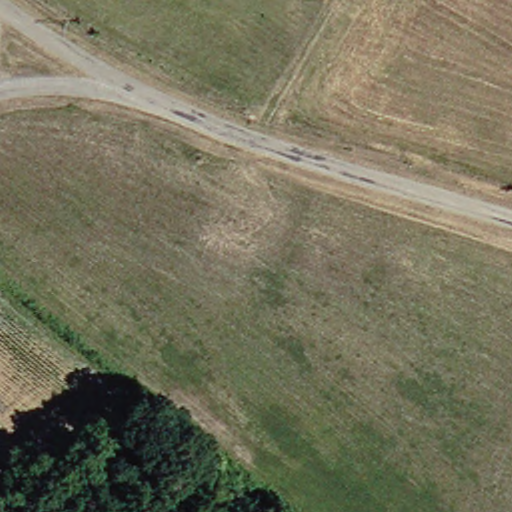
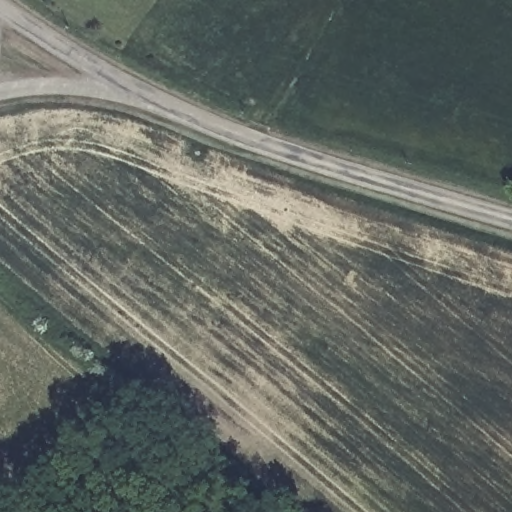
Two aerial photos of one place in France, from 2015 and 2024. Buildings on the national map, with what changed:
[]

